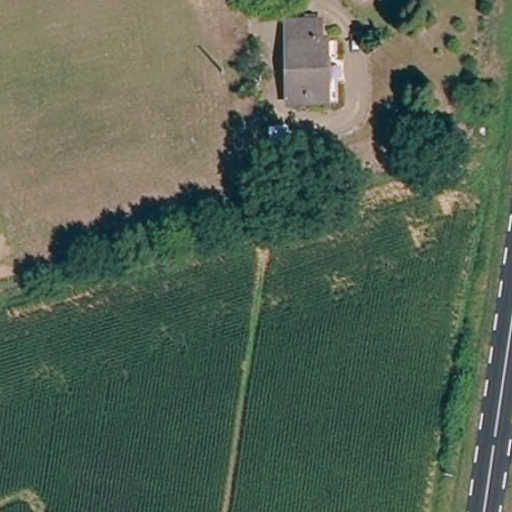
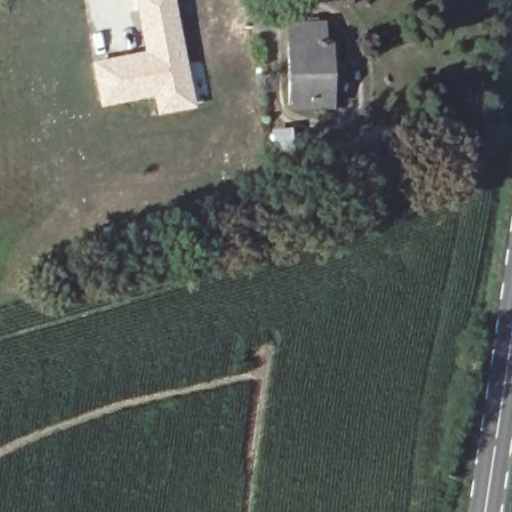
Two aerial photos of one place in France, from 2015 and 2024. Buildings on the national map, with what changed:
new [(141,49),(133,0),(174,0),(190,75),(195,107),(156,114),(152,96),(100,106),(91,60),(141,49)]
unchanged [(284,108),(283,20),(327,19),(333,106),(284,108)]

